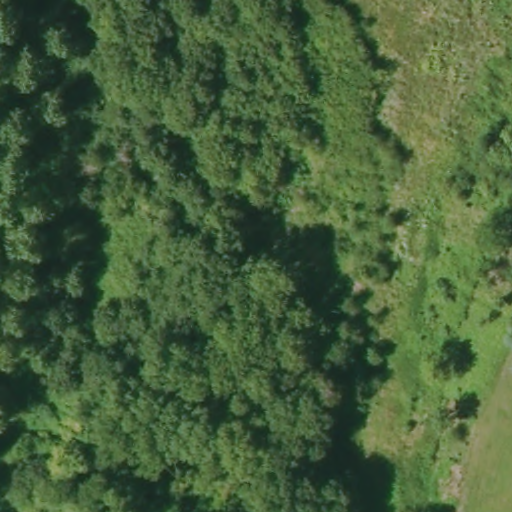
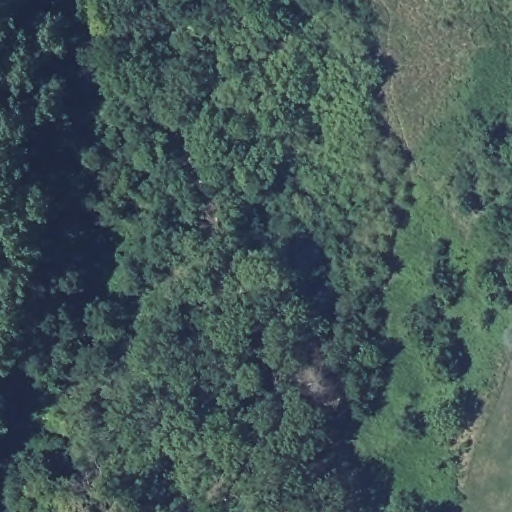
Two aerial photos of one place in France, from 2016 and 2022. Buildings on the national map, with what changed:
unchanged [(205,502),(211,467),(230,474),(225,507),(205,502)]

